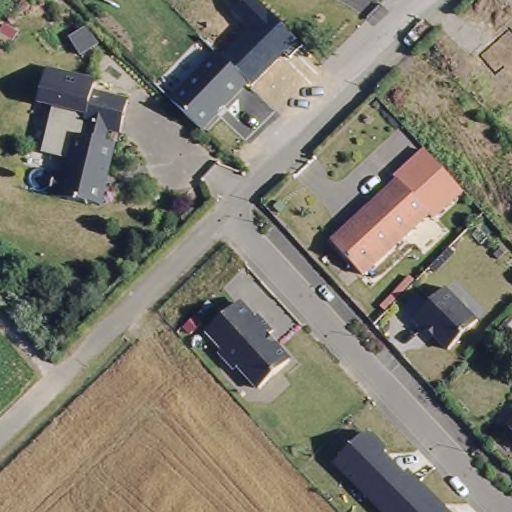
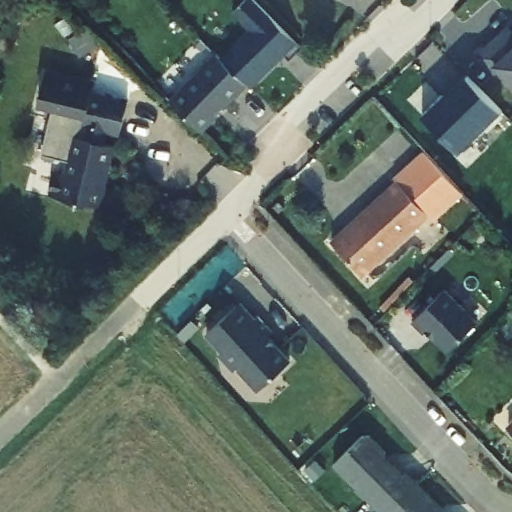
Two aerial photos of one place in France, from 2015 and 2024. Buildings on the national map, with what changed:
unchanged [(232,11),(245,0),(256,0),(302,45),(290,58),(286,54),(252,88),(249,84),(202,134),(167,100),(249,29),(232,11)]
unchanged [(507,28),(512,33),(512,84),(499,69),(492,74),(476,55),(507,28)]
unchanged [(83,125),(89,127),(85,139),(75,136),(70,154),(69,154),(67,158),(44,154),(52,110),(37,108),(47,69),(96,79),(90,94),(83,125)]
new [(441,94),(444,97),(466,75),(497,107),(455,149),(420,114),(441,94)]
unchanged [(105,130),(102,143),(114,145),(105,178),(104,177),(102,185),(105,189),(100,207),(87,204),(86,205),(48,197),(54,173),(64,175),(69,154),(70,154),(75,136),(85,139),(89,127),(83,125),(90,94),(127,102),(120,134),(105,130)]
unchanged [(397,174),(423,150),(462,193),(440,216),(434,210),(405,179),(403,177),(397,174)]
unchanged [(403,177),(434,210),(367,272),(337,238),(403,177)]
unchanged [(476,321),(447,351),(413,321),(445,290),(476,321)]
unchanged [(256,321),(262,316),(277,333),(272,338),(294,362),(263,391),(241,367),(234,367),(225,357),(225,349),(210,334),(242,305),(256,321)]
unchanged [(505,424),(512,417),(512,431),(505,424)]
unchanged [(335,464),(367,430),(388,451),(384,454),(404,474),(407,470),(448,512),(382,512),(335,464)]

